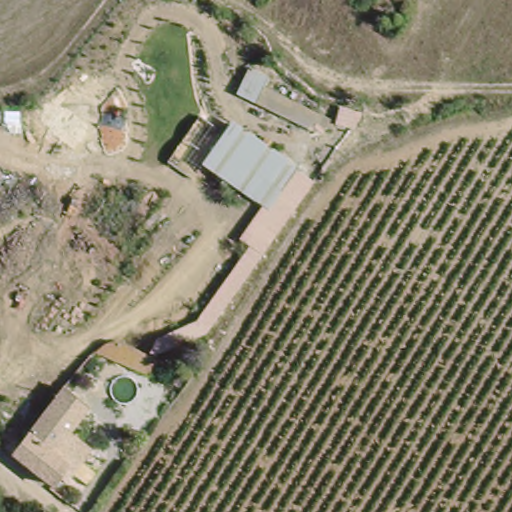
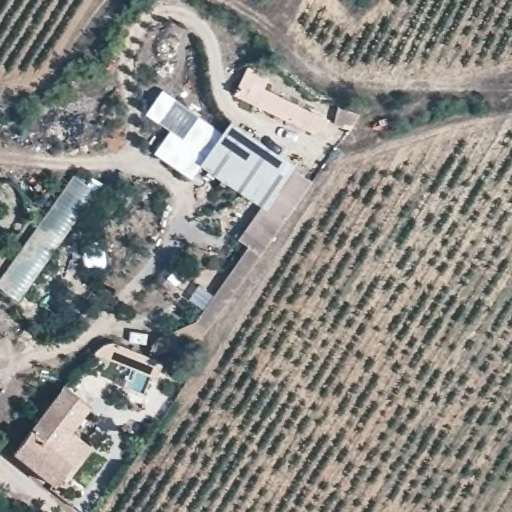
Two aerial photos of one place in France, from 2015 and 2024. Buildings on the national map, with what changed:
unchanged [(311,135),(252,106),(233,97),(246,72),(265,81),(261,90),(319,119),(311,135)]
new [(201,117),(227,135),(202,172),(198,171),(192,179),(169,162),(201,117)]
unchanged [(267,216),(259,211),(202,172),(229,133),(292,177),(267,216)]
new [(0,280),(74,174),(97,192),(20,300),(0,287),(0,280)]
unchanged [(312,190),(286,227),(272,217),(247,253),(236,245),(259,211),(267,216),(292,177),(312,190)]
unchanged [(194,329),(247,253),(272,217),(286,227),(247,284),(207,340),(206,342),(167,355),(162,341),(194,329)]
unchanged [(161,371),(121,355),(127,341),(167,355),(161,371)]
unchanged [(69,432),(80,440),(62,464),(67,466),(52,485),(10,454),(51,399),(59,388),(85,408),(69,432)]

